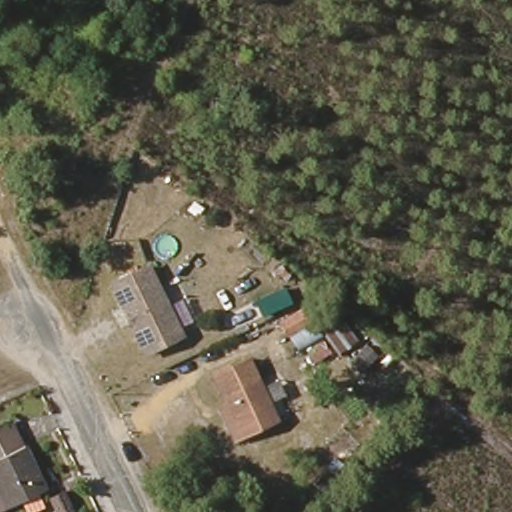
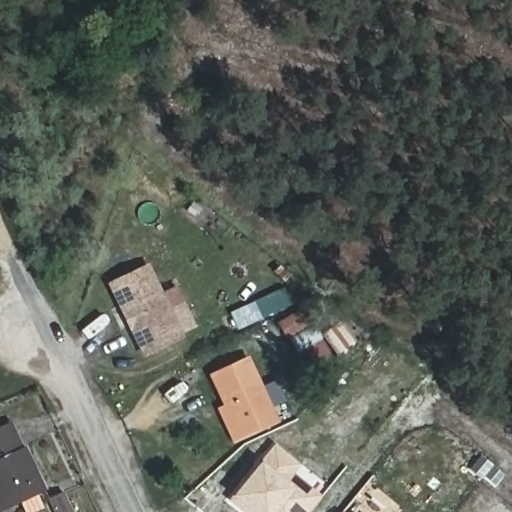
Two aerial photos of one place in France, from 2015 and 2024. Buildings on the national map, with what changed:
unchanged [(183,334),(147,353),(111,284),(148,266),(183,334)]
unchanged [(310,323),(314,321),(335,357),(317,367),(307,349),(299,354),(277,324),(301,309),(310,323)]
unchanged [(222,413),(229,410),(214,379),(250,362),(279,421),(243,439),(237,442),(222,413)]
unchanged [(39,493),(45,506),(34,512),(33,512),(26,499),(0,511),(0,496),(3,494),(0,487),(0,431),(15,424),(27,450),(29,449),(48,489),(39,493)]
new [(241,512),(227,501),(230,498),(259,462),(273,444),(299,464),(292,473),(322,496),(309,512),(241,512)]
unchanged [(58,512),(52,499),(62,495),(71,512),(58,512)]

